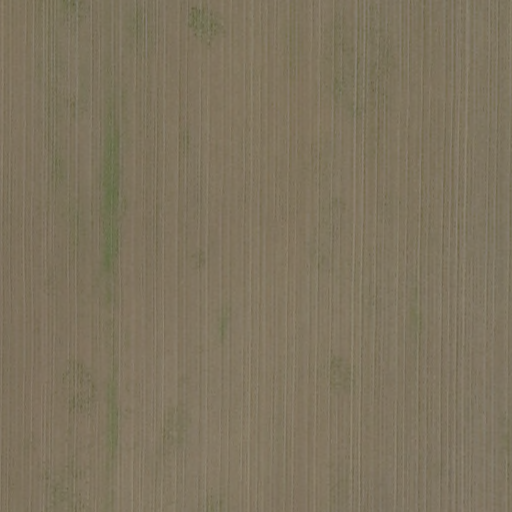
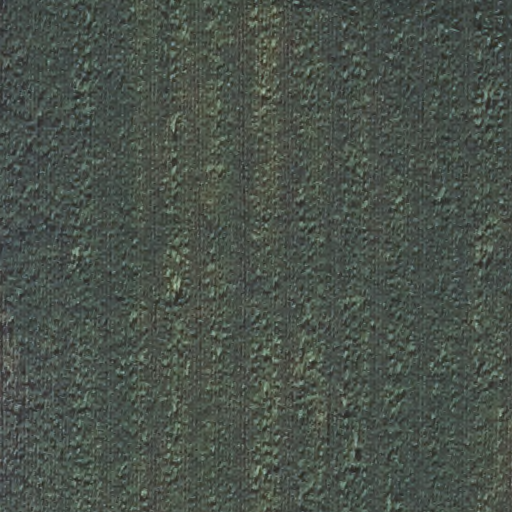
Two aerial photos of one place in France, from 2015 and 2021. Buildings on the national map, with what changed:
[]

